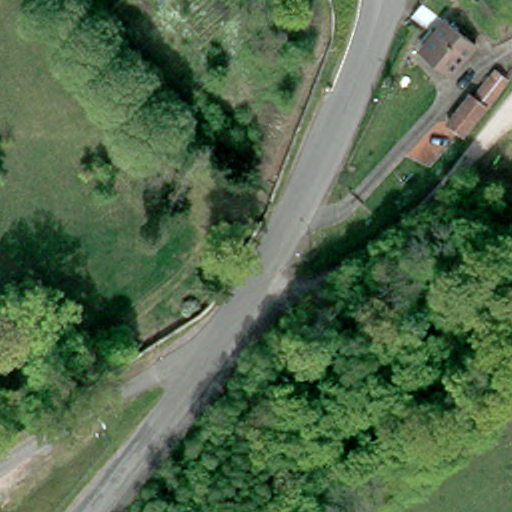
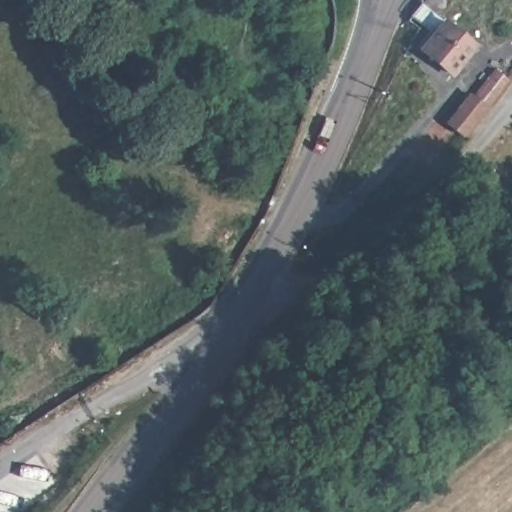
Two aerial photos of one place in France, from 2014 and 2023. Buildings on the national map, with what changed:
unchanged [(429,48),(431,45),(426,41),(438,26),(426,16),(433,6),(481,45),(459,73),(429,48)]
unchanged [(476,98),(497,72),(507,80),(464,135),(449,121),(472,94),(476,98)]

